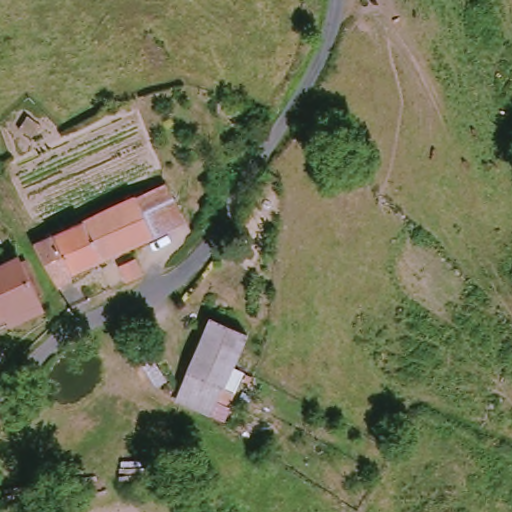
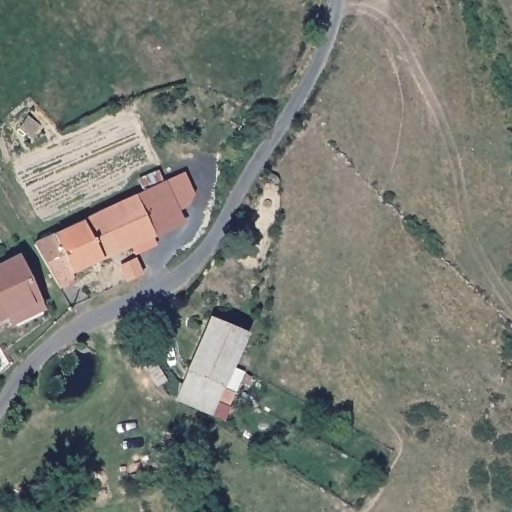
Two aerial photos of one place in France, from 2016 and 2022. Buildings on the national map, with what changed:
unchanged [(59,290),(34,246),(158,181),(167,200),(167,205),(167,218),(148,229),(151,235),(106,260),(92,267),(71,280),(72,281),(59,290)]
unchanged [(18,259),(39,301),(0,319),(0,268),(18,259)]
unchanged [(209,322),(247,338),(211,416),(174,400),(209,322)]

